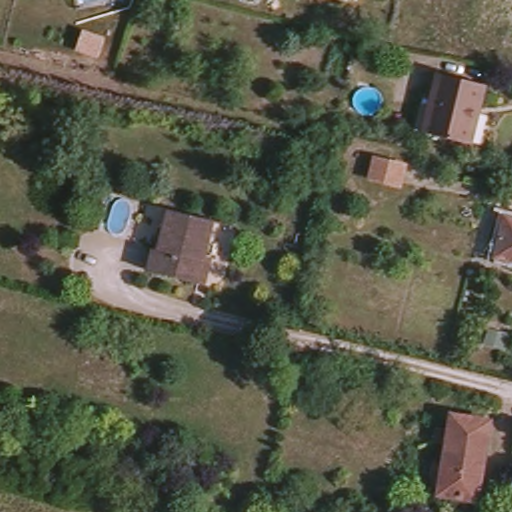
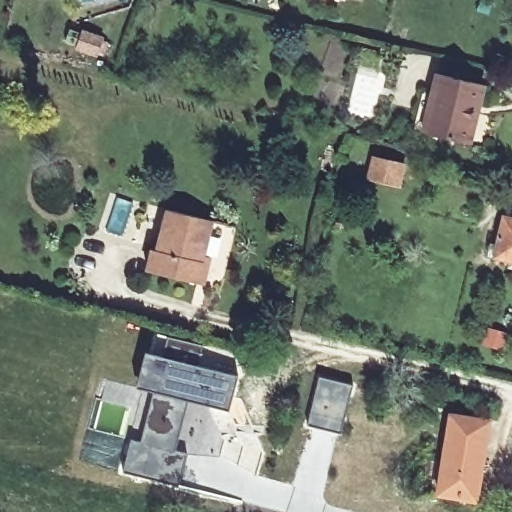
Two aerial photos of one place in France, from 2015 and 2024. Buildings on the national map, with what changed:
unchanged [(479,114),(472,144),(459,141),(414,131),(420,106),(423,93),(431,95),(436,74),(483,85),(476,113),(479,114)]
unchanged [(411,157),(407,173),(402,195),(370,187),(375,166),(367,164),(370,147),(411,157)]
unchanged [(204,285),(193,282),(156,273),(146,271),(150,252),(156,253),(166,212),(209,221),(201,258),(210,261),(204,285)]
unchanged [(512,222),(512,261),(495,257),(503,220),(512,222)]
new [(181,485),(124,472),(131,440),(142,441),(156,391),(138,386),(147,352),(166,356),(169,337),(204,345),(200,365),(240,376),(230,409),(190,399),(177,450),(187,453),(181,485)]
new [(308,424),(320,377),(353,386),(341,431),(308,424)]
unchanged [(489,424),(476,502),(437,496),(449,418),(489,424)]

